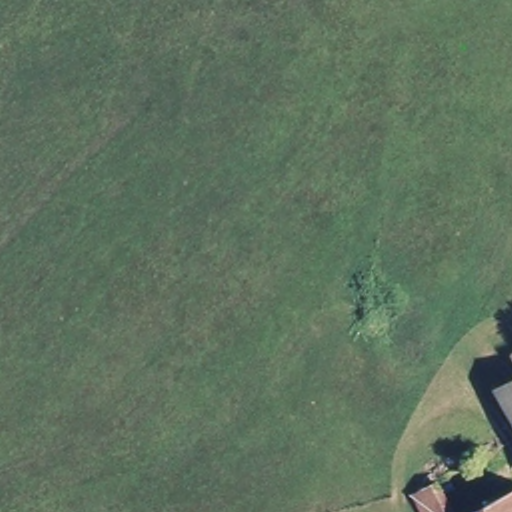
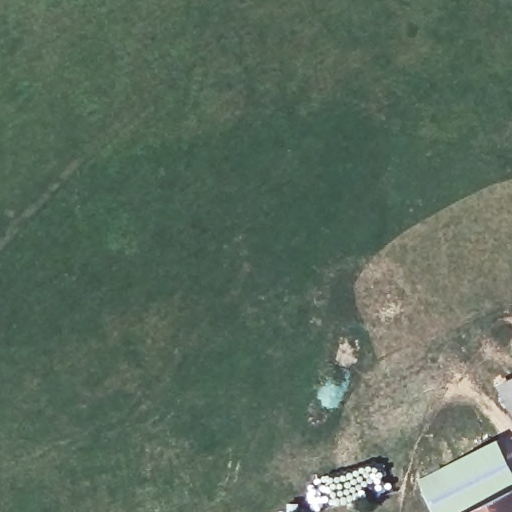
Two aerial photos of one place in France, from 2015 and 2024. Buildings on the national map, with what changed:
unchanged [(512,372),(512,405),(499,380),(512,372)]
new [(512,487),(466,512),(459,512),(441,474),(422,486),(418,480),(497,437),(512,465),(512,487)]
unchanged [(441,474),(459,512),(433,512),(422,486),(441,474)]
unchanged [(512,512),(466,512),(512,487),(512,512)]

